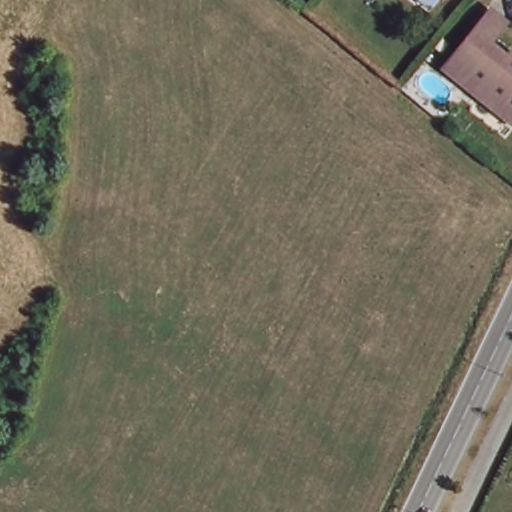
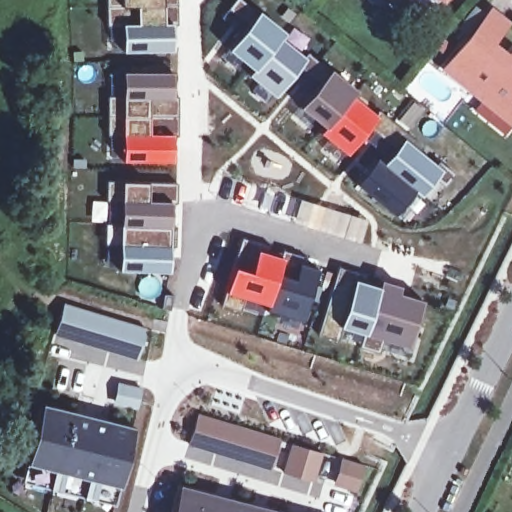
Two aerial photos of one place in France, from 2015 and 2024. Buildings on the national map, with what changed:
new [(177,7),(165,7),(168,26),(176,26),(175,53),(124,53),(127,26),(109,26),(108,0),(177,0),(177,7)]
unchanged [(447,62),(494,5),(509,17),(492,37),(510,52),(512,49),(512,115),(447,62)]
new [(292,35),(284,41),(307,58),(310,53),(319,60),(309,74),(304,69),(279,98),(251,77),(258,73),(230,51),(260,13),(292,35)]
new [(361,93),(355,99),(380,118),(349,157),(322,134),(327,129),(305,110),(334,71),(361,93)]
new [(176,74),(180,137),(176,137),(176,162),(125,162),(126,137),(110,137),(110,99),(124,99),(122,74),(176,74)]
new [(447,174),(426,200),(417,192),(397,219),(359,188),(379,161),(388,167),(405,141),(447,174)]
new [(177,183),(176,205),(174,203),(174,273),(122,276),(124,249),(106,249),(108,226),(125,229),(125,201),(107,201),(107,183),(177,183)]
new [(254,275),(259,255),(285,260),(282,280),(297,283),(302,264),(319,271),(305,323),(267,311),(269,307),(244,300),(240,311),(223,306),(225,291),(231,295),(236,270),(254,275)]
new [(361,273),(358,285),(382,292),(385,284),(406,288),(401,297),(422,303),(410,351),(385,343),(382,353),(362,346),(365,337),(342,330),(338,339),(319,333),(338,269),(361,273)]
new [(62,302),(145,326),(135,360),(110,353),(106,365),(68,355),(69,350),(50,345),(62,302)]
new [(145,389),(142,413),(115,406),(119,385),(145,389)]
new [(141,430),(125,493),(104,485),(98,505),(87,501),(93,483),(69,475),(67,494),(54,492),(58,473),(30,467),(47,408),(141,430)]
new [(197,412),(281,437),(272,468),(282,472),(279,487),(184,458),(197,412)]
new [(282,472),(290,442),(325,452),(311,496),(279,487),(282,472)]
new [(340,456),(370,465),(360,493),(332,485),(340,456)]
new [(176,512),(182,487),(273,512),(176,512)]

